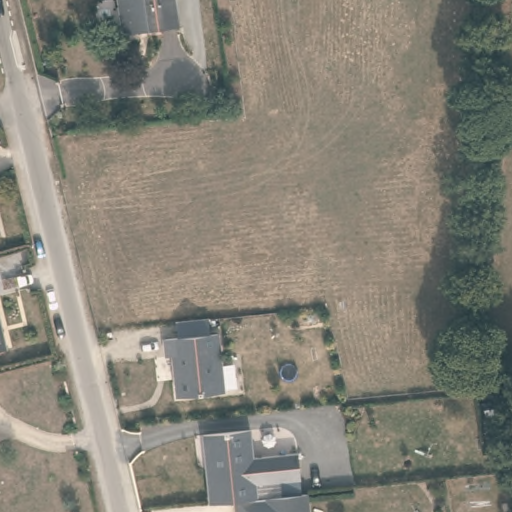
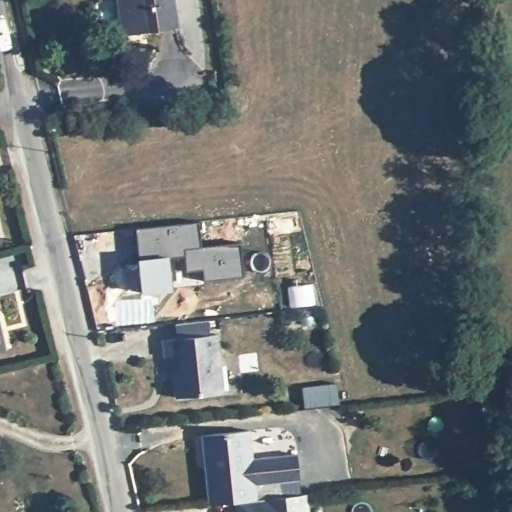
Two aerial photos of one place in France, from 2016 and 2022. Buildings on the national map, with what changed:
unchanged [(180,21),(139,27),(135,0),(177,0),(180,21)]
new [(203,281),(202,271),(187,272),(186,256),(170,257),(172,290),(142,293),(137,258),(140,258),(137,228),(199,222),(202,247),(241,244),(245,276),(203,281)]
unchanged [(8,348),(0,350),(0,315),(8,348)]
unchanged [(217,337),(224,393),(177,399),(172,358),(166,358),(165,343),(217,337)]
unchanged [(207,459),(205,437),(252,431),(255,460),(300,455),(302,481),(257,486),(260,501),(228,504),(219,505),(212,506),(207,459)]
unchanged [(310,495),(311,512),(267,512),(266,500),(287,497),(310,495)]

